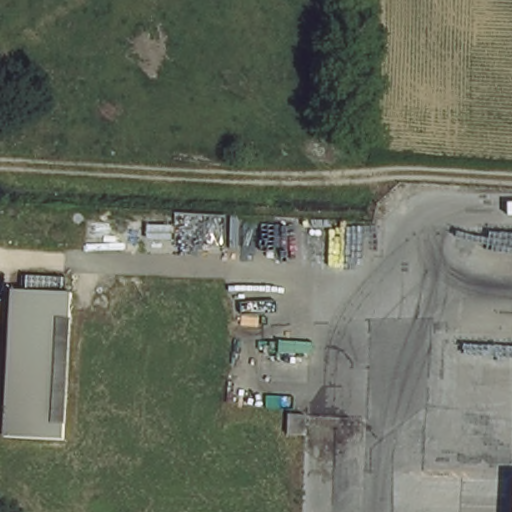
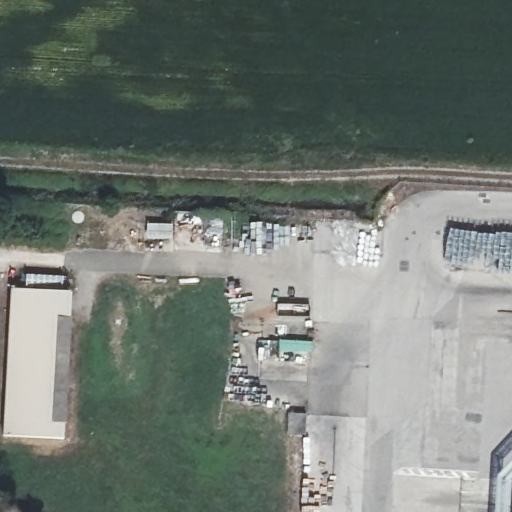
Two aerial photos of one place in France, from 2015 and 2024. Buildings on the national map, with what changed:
unchanged [(2,433),(11,284),(25,285),(26,270),(65,272),(65,286),(71,287),(70,315),(65,437),(2,433)]
unchanged [(286,441),(288,417),(308,417),(306,442),(286,441)]

